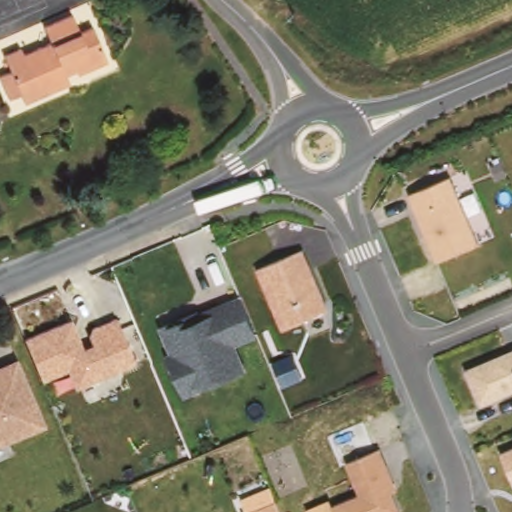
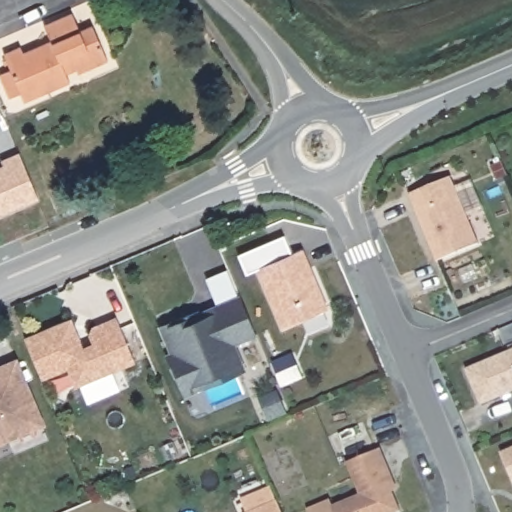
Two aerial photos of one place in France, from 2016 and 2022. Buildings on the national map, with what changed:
unchanged [(25,96),(16,98),(5,75),(15,70),(8,54),(25,48),(26,53),(54,42),(49,29),(77,15),(85,32),(97,27),(114,62),(83,76),(79,67),(69,72),(75,86),(29,104),(25,96)]
new [(0,170),(4,168),(1,160),(19,154),(37,199),(0,214),(0,170)]
unchanged [(478,247),(437,262),(410,197),(450,181),(478,247)]
unchanged [(302,253),(327,312),(284,331),(258,271),(302,253)]
unchanged [(217,308),(237,301),(255,341),(235,350),(245,373),(180,394),(165,358),(182,349),(174,325),(217,308)]
unchanged [(70,319),(81,349),(92,342),(87,335),(94,325),(114,317),(133,362),(75,388),(66,369),(40,380),(23,337),(70,319)]
unchanged [(481,407),(465,372),(512,353),(512,394),(481,407)]
unchanged [(44,426),(0,444),(0,366),(16,358),(44,426)]
new [(275,392),(285,415),(266,423),(256,400),(275,392)]
unchanged [(512,450),(512,487),(500,455),(512,450)]
unchanged [(380,452),(399,512),(332,512),(330,508),(357,497),(346,466),(380,452)]
unchanged [(280,512),(255,512),(277,504),(280,512)]

